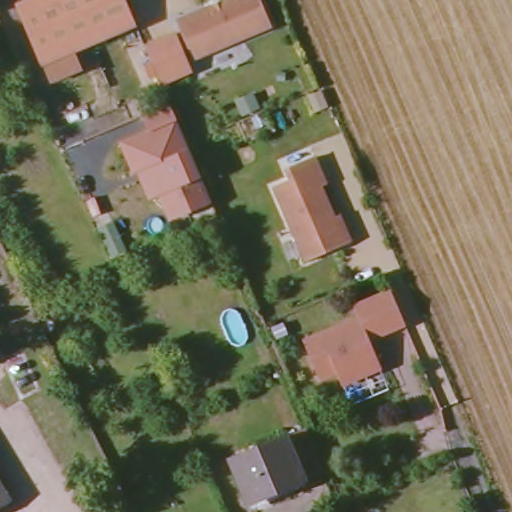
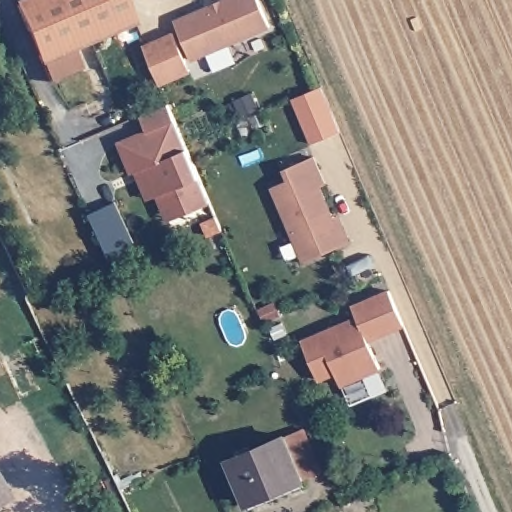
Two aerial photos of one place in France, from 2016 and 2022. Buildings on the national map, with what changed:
unchanged [(45,76),(37,60),(13,0),(123,0),(132,20),(70,46),(77,63),(45,76)]
unchanged [(215,6),(220,5),(221,0),(260,0),(270,24),(192,59),(176,21),(211,5),(215,6)]
unchanged [(172,37),(188,74),(158,87),(142,50),(172,37)]
new [(312,143),(294,98),(323,87),(340,130),(312,143)]
unchanged [(168,223),(162,208),(158,199),(145,205),(132,177),(120,146),(147,135),(142,120),(146,117),(172,106),(188,145),(202,177),(211,199),(213,204),(168,223)]
unchanged [(350,243),(345,245),(305,263),(272,187),(291,180),(287,168),(315,157),(327,185),(322,187),(335,218),(339,217),(350,243)]
unchanged [(405,330),(368,345),(380,374),(339,391),(333,379),(317,385),(302,345),(358,320),(353,310),(390,295),(405,330)]
unchanged [(235,455),(290,431),(309,475),(255,498),(235,455)]
unchanged [(10,500),(0,506),(0,482),(10,500)]

